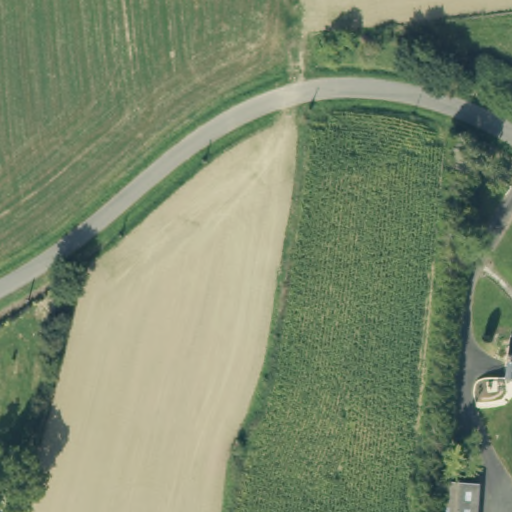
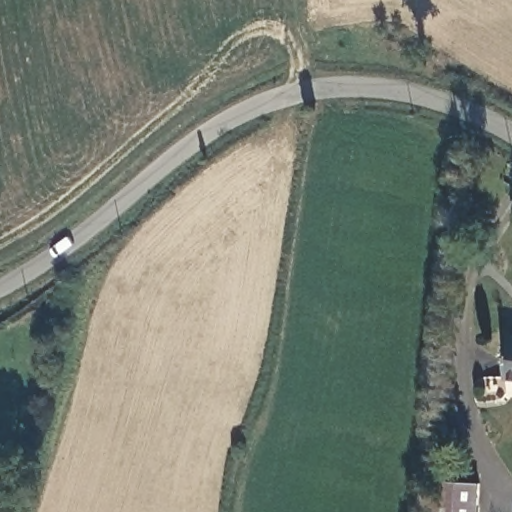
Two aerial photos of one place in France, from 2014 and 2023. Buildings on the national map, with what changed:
unchanged [(512,333),(512,377),(505,376),(511,333),(512,333)]
unchanged [(441,512),(443,482),(481,486),(479,512),(441,512)]

